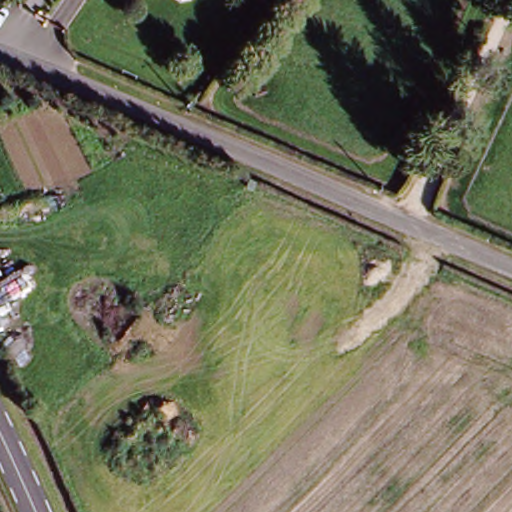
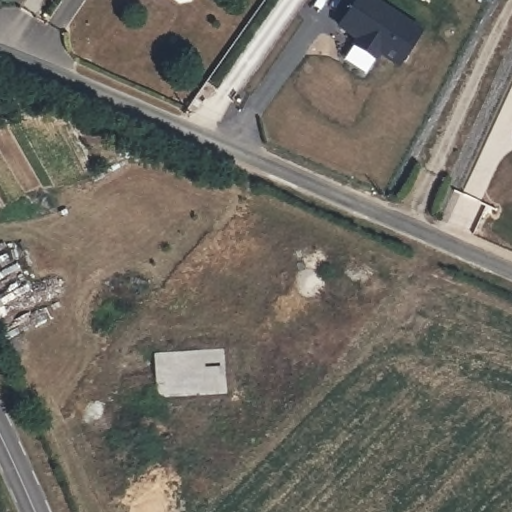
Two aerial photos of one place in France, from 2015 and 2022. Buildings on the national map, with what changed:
new [(376,48),(372,54),(350,39),(355,33),(337,19),(351,0),(380,0),(418,29),(394,62),(376,48)]
new [(225,392),(154,396),(154,350),(226,347),(225,392)]

